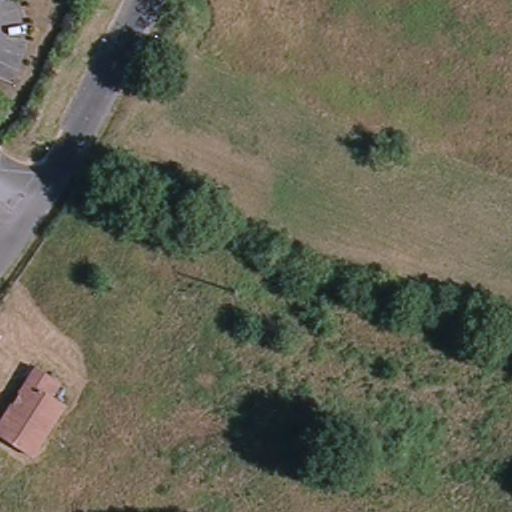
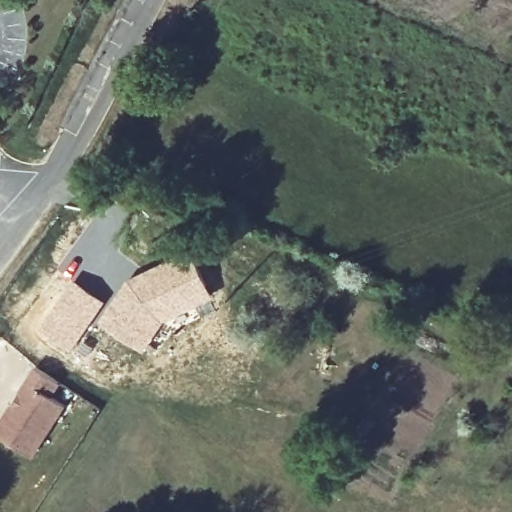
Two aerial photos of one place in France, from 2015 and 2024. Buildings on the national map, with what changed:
new [(130,277),(190,248),(216,297),(166,322),(144,351),(101,319),(130,277)]
new [(75,278),(106,301),(74,350),(39,327),(75,278)]
unchanged [(0,413),(36,365),(55,379),(49,386),(61,401),(27,449),(0,428),(0,413)]

